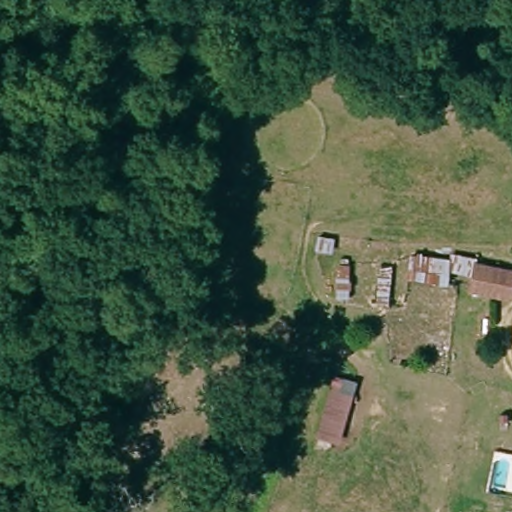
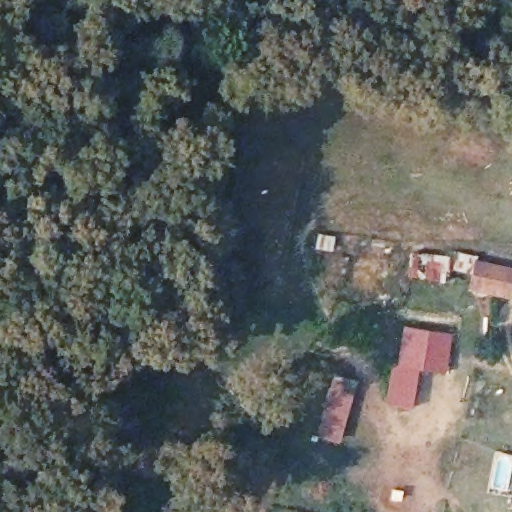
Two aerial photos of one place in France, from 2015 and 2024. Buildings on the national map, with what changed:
unchanged [(472,275),(461,273),(459,286),(432,285),(433,281),(409,279),(413,255),(451,259),(452,254),(481,257),(483,250),(512,256),(512,300),(472,294),(472,275)]
new [(451,335),(444,373),(414,368),(411,385),(396,382),(399,366),(396,365),(404,326),(451,335)]
unchanged [(356,377),(339,437),(317,430),(333,372),(356,377)]

